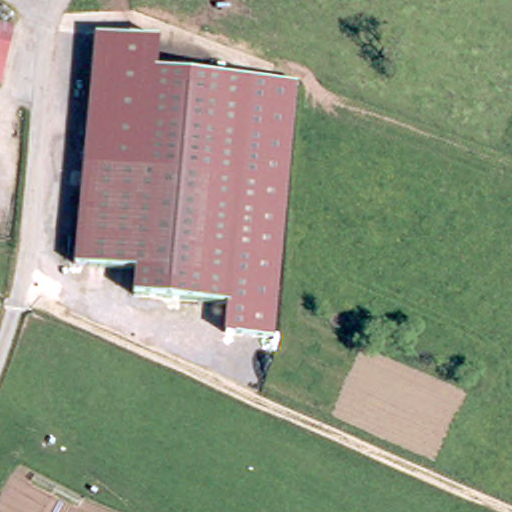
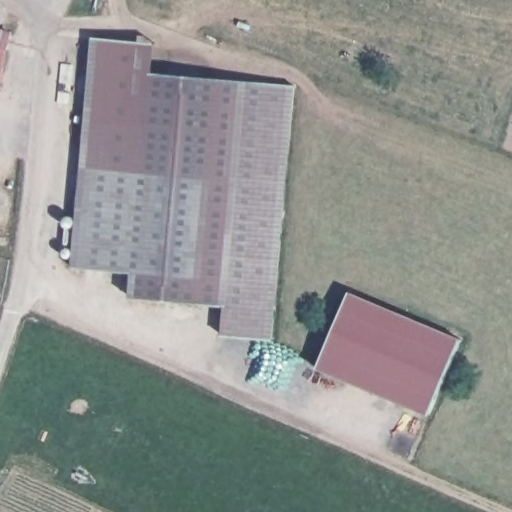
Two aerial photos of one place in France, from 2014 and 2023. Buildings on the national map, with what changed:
unchanged [(7,31),(0,63),(0,28),(7,31)]
unchanged [(155,44),(153,75),(246,84),(228,304),(130,299),(132,274),(75,269),(91,41),(155,44)]
unchanged [(297,89),(272,338),(225,333),(228,304),(246,84),(297,89)]
new [(461,338),(428,415),(317,367),(350,291),(461,338)]

